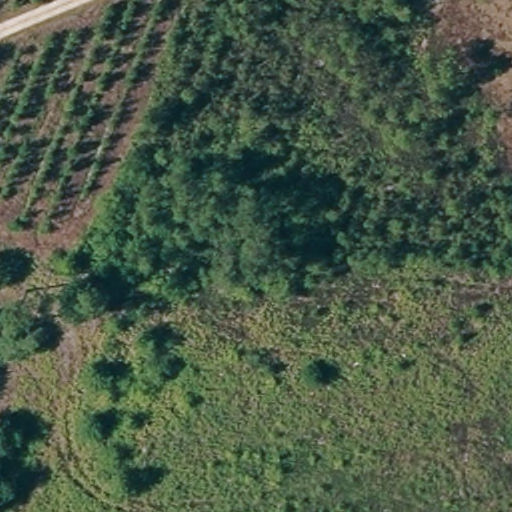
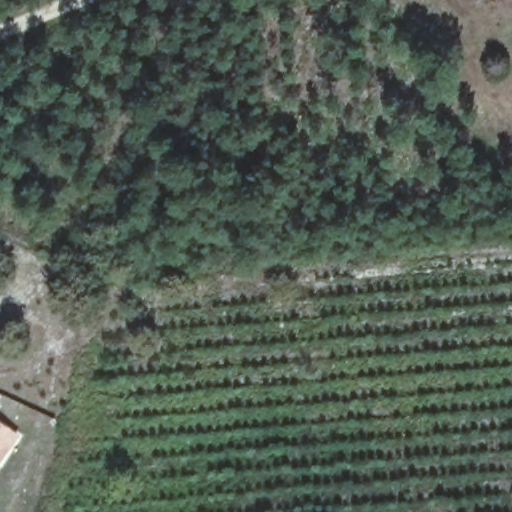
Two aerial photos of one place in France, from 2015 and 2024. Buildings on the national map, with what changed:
new [(20,436),(0,467),(0,422),(20,436)]

